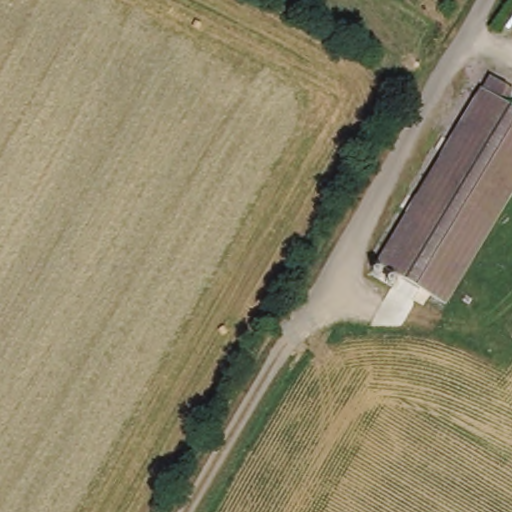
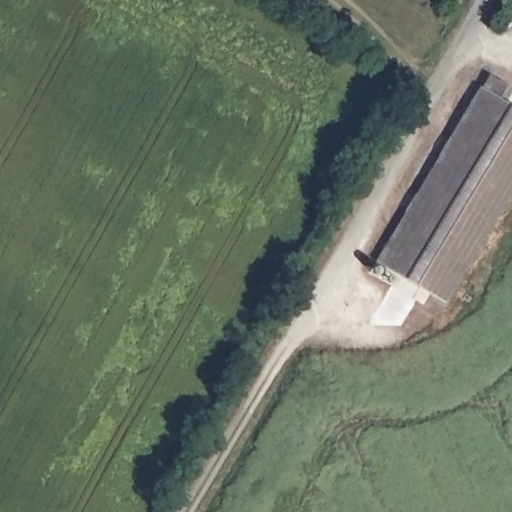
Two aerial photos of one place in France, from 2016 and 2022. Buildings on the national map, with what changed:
unchanged [(491,76),(511,86),(500,102),(512,109),(512,193),(445,307),(380,266),(445,157),(491,76)]

